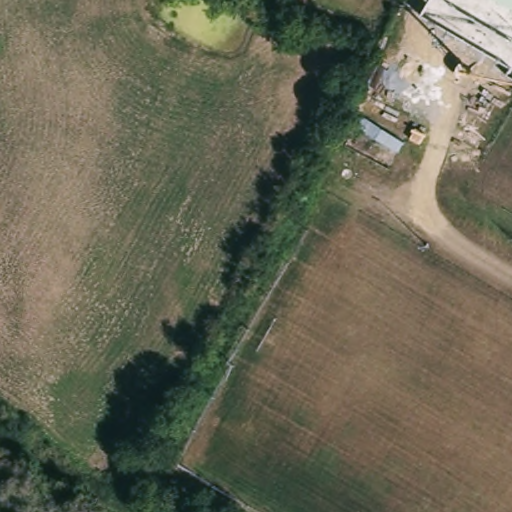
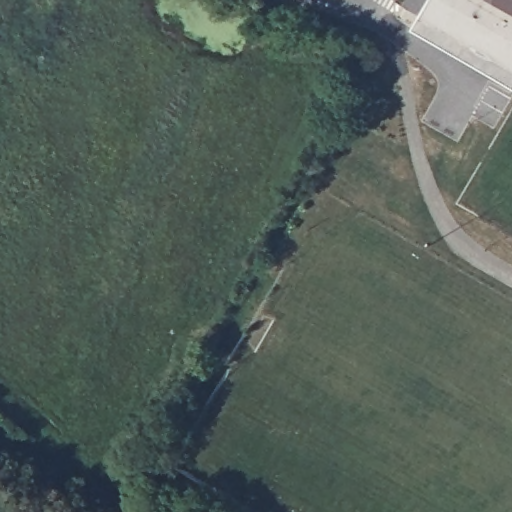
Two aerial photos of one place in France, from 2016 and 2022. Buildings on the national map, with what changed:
unchanged [(487,0),(512,0),(512,14),(487,0)]

